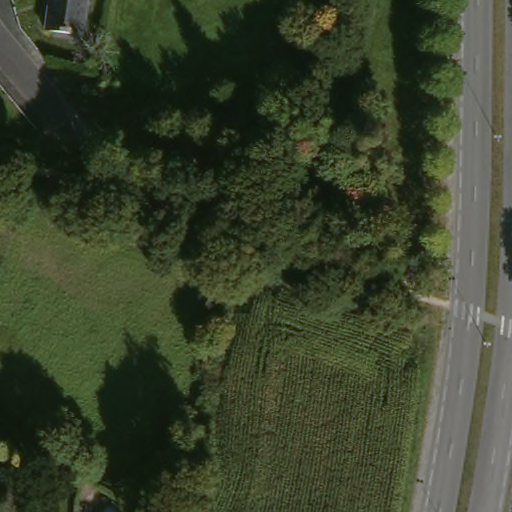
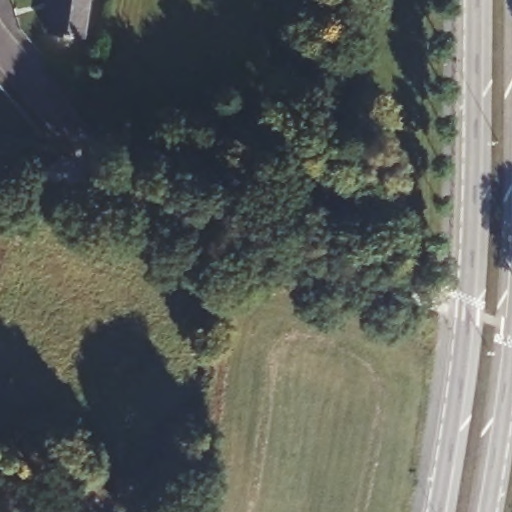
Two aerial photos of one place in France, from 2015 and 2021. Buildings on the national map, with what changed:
unchanged [(77,38),(39,33),(43,0),(81,0),(77,38)]

